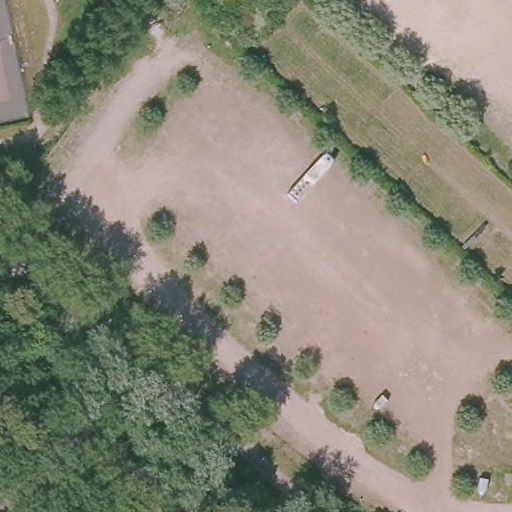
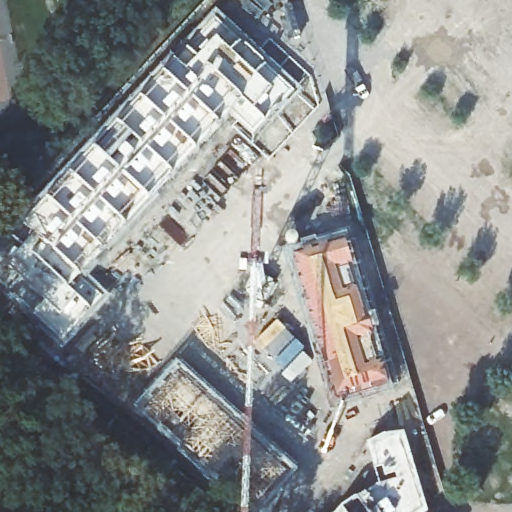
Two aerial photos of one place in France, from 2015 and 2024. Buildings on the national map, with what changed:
new [(62,341),(0,284),(0,251),(216,20),(294,92),(256,134),(233,114),(80,280),(102,298),(62,341)]
new [(336,402),(293,256),(346,242),(389,387),(336,402)]
new [(253,512),(143,414),(178,375),(286,473),(253,512)]
new [(356,500),(379,484),(366,443),(404,433),(428,512),(338,512),(342,510),(356,500)]

